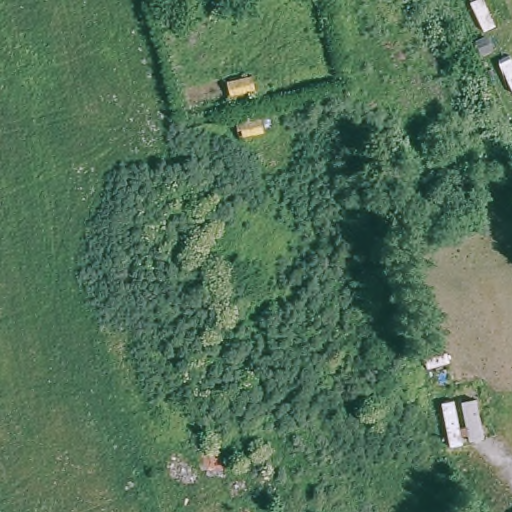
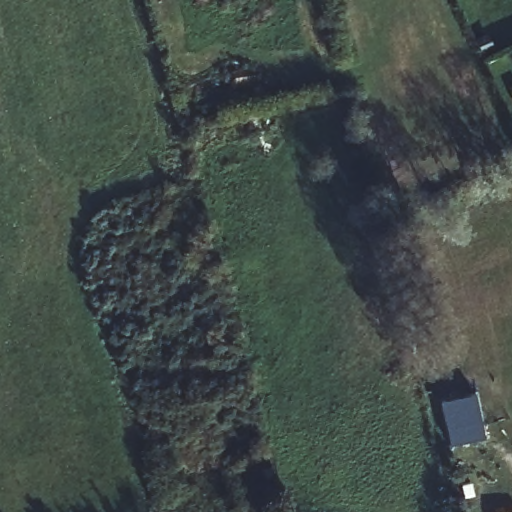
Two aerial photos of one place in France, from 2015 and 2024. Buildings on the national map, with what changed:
new [(483,439),(450,446),(441,402),(475,395),(483,439)]

